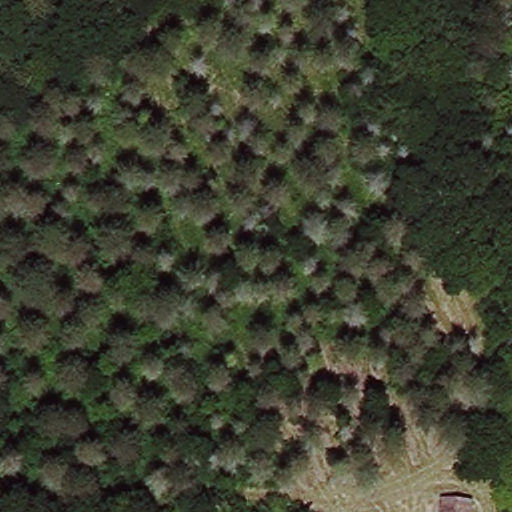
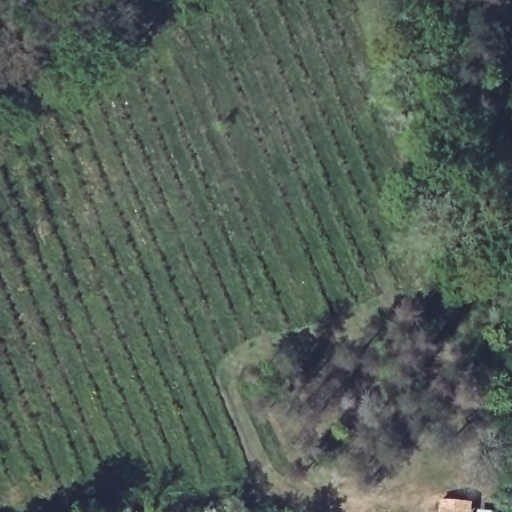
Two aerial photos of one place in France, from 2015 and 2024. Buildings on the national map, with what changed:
unchanged [(444,500),(472,502),(472,512),(443,512),(444,500)]

